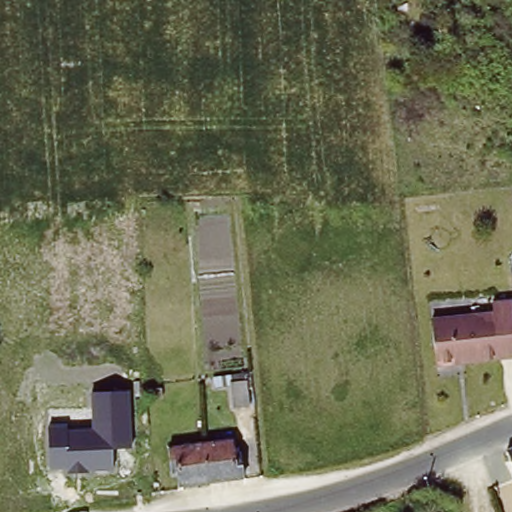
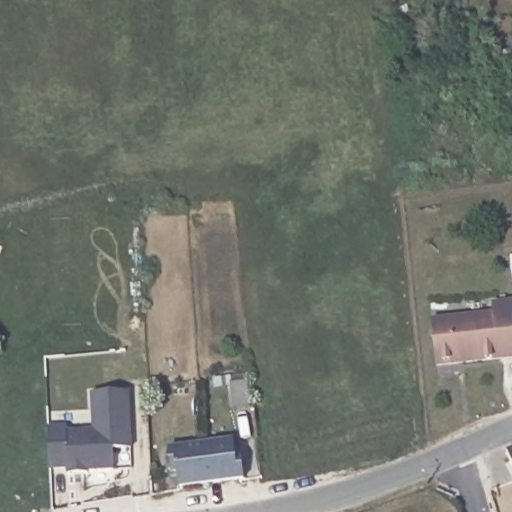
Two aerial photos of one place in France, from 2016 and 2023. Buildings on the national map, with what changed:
unchanged [(389,16),(389,0),(409,0),(410,13),(389,16)]
unchanged [(443,367),(438,322),(497,315),(496,306),(512,304),(512,359),(443,367)]
unchanged [(68,425),(68,430),(91,428),(89,392),(130,391),(132,448),(112,450),(113,470),(88,471),(89,474),(67,475),(67,468),(50,470),(47,427),(68,425)]
unchanged [(183,485),(179,446),(235,441),(240,479),(183,485)]
unchanged [(512,451),(512,461),(510,457),(509,452),(512,451)]

